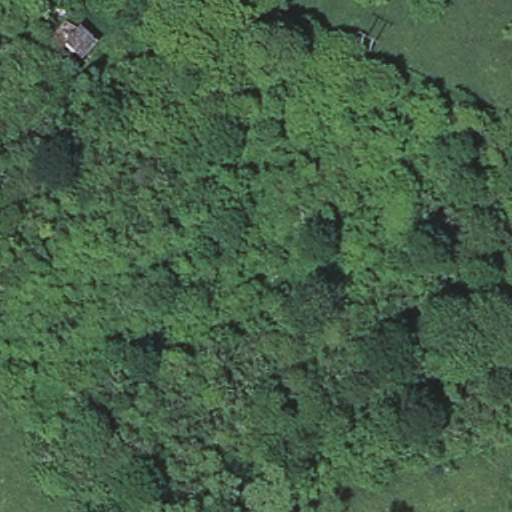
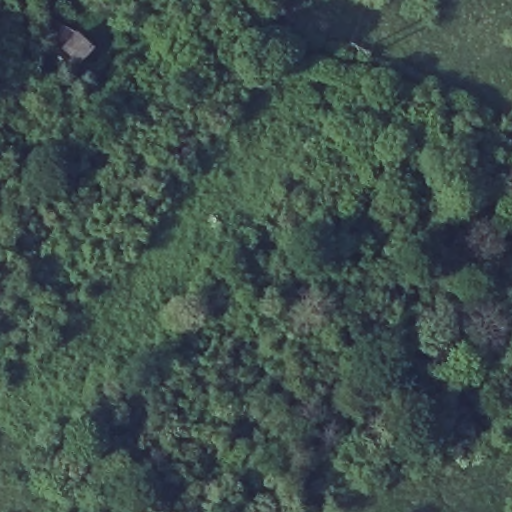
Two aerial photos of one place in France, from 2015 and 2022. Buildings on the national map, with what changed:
unchanged [(77,70),(61,55),(79,32),(95,50),(77,70)]

